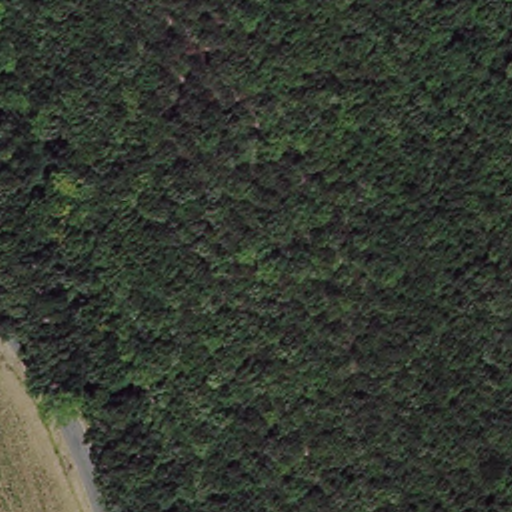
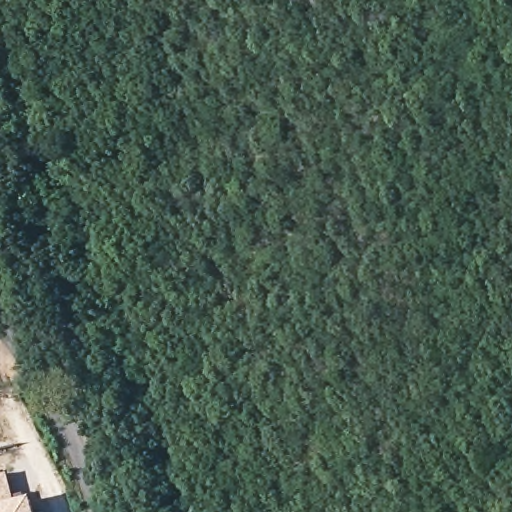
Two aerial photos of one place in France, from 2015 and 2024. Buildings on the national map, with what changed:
new [(15,501),(33,496),(37,512),(0,512),(0,475),(8,472),(15,501)]

